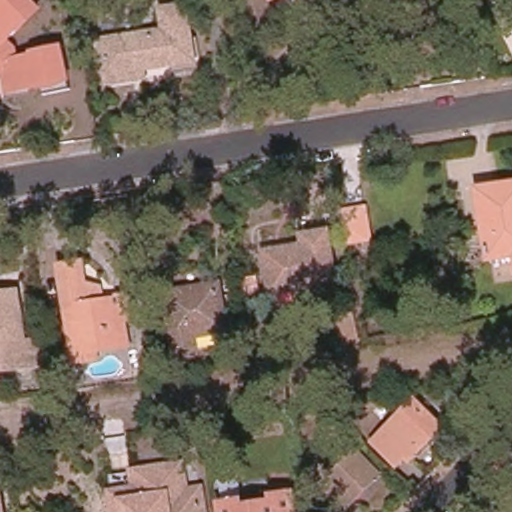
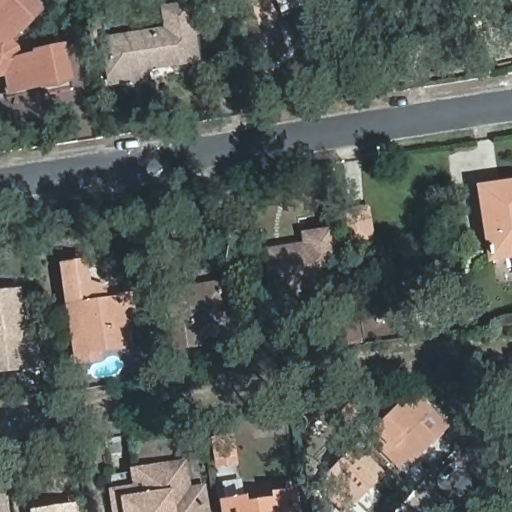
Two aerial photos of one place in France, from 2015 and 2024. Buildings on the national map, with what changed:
unchanged [(22,64),(68,56),(73,93),(13,98),(12,83),(0,84),(0,13),(6,6),(2,0),(30,0),(41,12),(11,42),(22,64)]
unchanged [(121,74),(109,76),(103,36),(168,27),(165,7),(184,4),(189,34),(192,56),(168,59),(140,63),(141,72),(130,73),(121,74)]
unchanged [(487,252),(479,186),(512,181),(512,254),(487,258),(487,252)]
unchanged [(273,296),(268,257),(308,252),(306,242),(329,239),(336,287),(273,296)]
unchanged [(75,271),(79,300),(98,297),(100,310),(113,308),(113,302),(119,301),(122,321),(116,322),(120,351),(86,356),(88,364),(70,366),(57,274),(75,271)]
unchanged [(222,285),(228,330),(196,334),(197,342),(177,345),(169,292),(222,285)]
unchanged [(33,348),(35,368),(0,372),(0,300),(12,299),(20,350),(33,348)]
unchanged [(420,399),(447,425),(417,456),(413,452),(404,463),(378,439),(420,399)]
unchanged [(240,436),(244,460),(225,463),(222,439),(240,436)]
unchanged [(328,478),(325,475),(351,449),(377,474),(341,509),(319,487),(328,478)]
unchanged [(143,502),(138,474),(183,466),(188,494),(203,492),(206,512),(116,512),(115,507),(143,502)]
unchanged [(0,512),(0,492),(3,512),(0,512)]
unchanged [(244,503),(245,508),(275,504),(274,498),(291,496),(294,512),(222,512),(222,506),(244,503)]
new [(30,512),(30,511),(81,503),(82,512),(30,512)]

